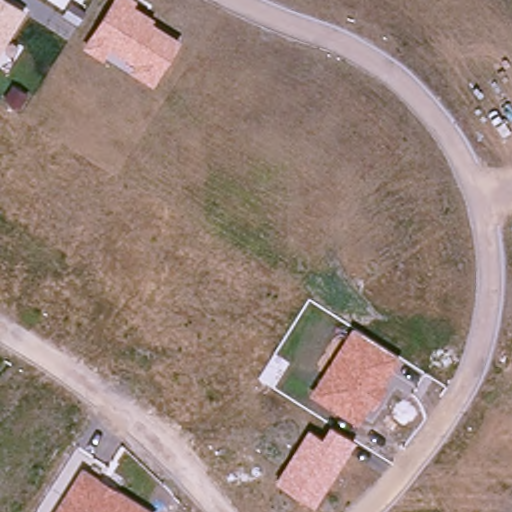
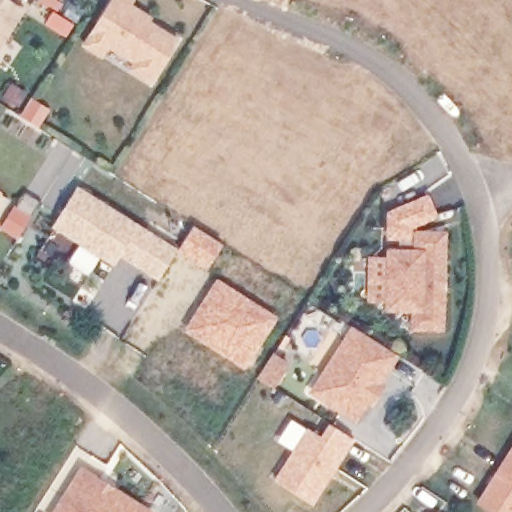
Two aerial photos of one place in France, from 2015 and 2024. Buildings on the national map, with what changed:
unchanged [(0,51),(0,0),(6,0),(25,12),(0,51)]
unchanged [(135,8),(156,19),(153,24),(181,41),(154,85),(130,70),(134,64),(111,49),(103,61),(83,48),(112,0),(136,0),(137,1),(135,8)]
new [(53,226),(79,185),(179,246),(157,279),(120,255),(115,265),(53,226)]
new [(39,202),(17,239),(0,228),(0,225),(24,192),(39,202)]
new [(410,312),(385,311),(386,302),(368,302),(368,257),(387,257),(388,212),(428,196),(437,216),(412,231),(447,232),(445,330),(411,331),(410,312)]
new [(186,332),(218,280),(277,317),(245,369),(186,332)]
unchanged [(398,359),(383,383),(388,387),(372,411),(368,409),(355,426),(311,394),(351,328),(398,359)]
unchanged [(321,439),(330,425),(355,442),(314,510),(275,484),(308,430),(321,439)]
new [(512,448),(512,512),(490,512),(477,504),(512,448)]
unchanged [(54,512),(82,466),(153,512),(54,512)]

